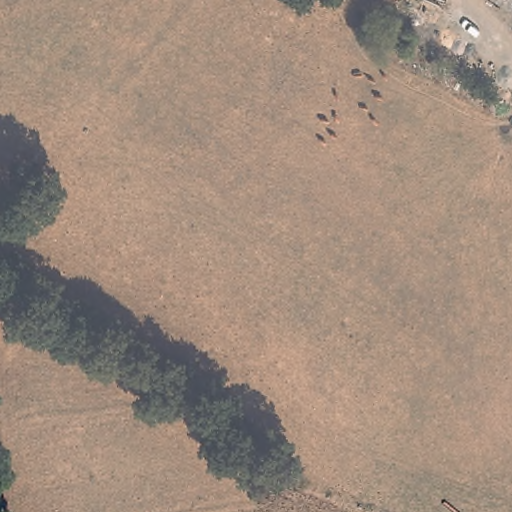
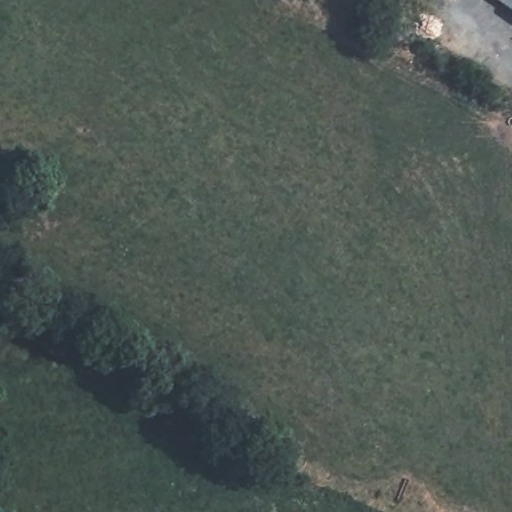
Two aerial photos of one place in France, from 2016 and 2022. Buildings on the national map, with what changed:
unchanged [(496,0),(512,0),(512,11),(496,0)]

